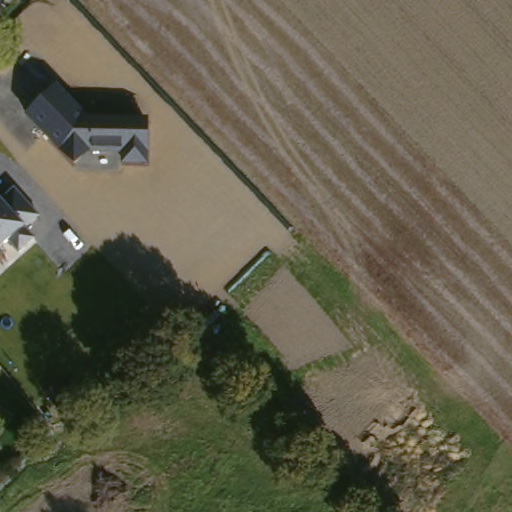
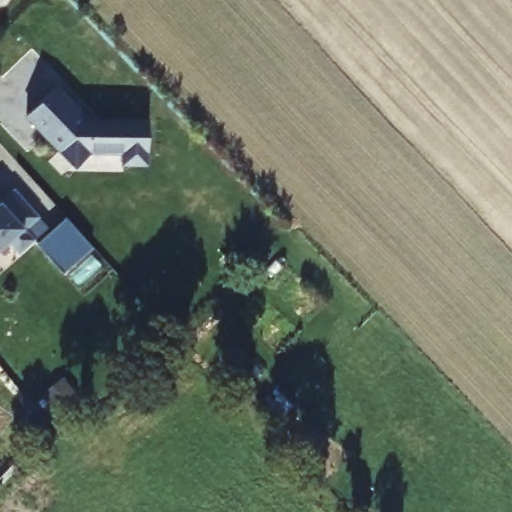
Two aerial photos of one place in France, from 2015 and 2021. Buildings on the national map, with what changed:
unchanged [(87,117),(149,119),(148,166),(120,167),(120,155),(90,155),(74,170),(58,152),(25,118),(57,87),(87,117)]
unchanged [(27,230),(35,237),(19,253),(10,246),(0,253),(0,201),(13,190),(40,217),(27,230)]
new [(37,244),(67,218),(94,248),(62,273),(37,244)]

